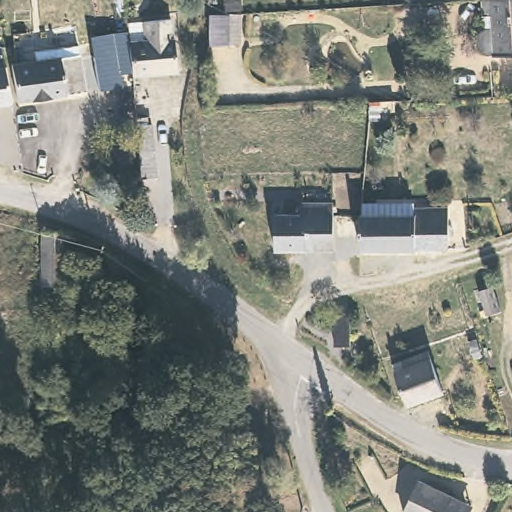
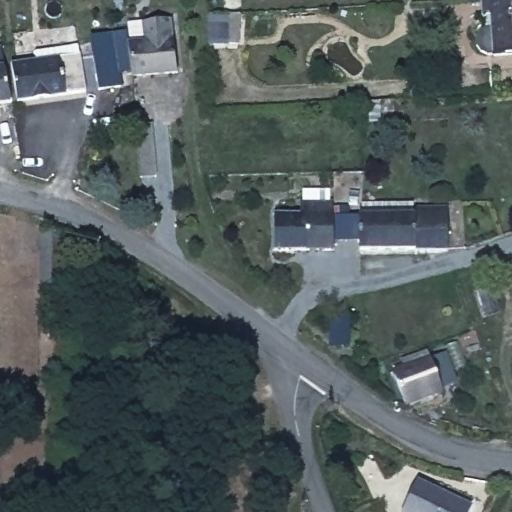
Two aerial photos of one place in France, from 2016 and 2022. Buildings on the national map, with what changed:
unchanged [(494,57),(494,54),(487,55),(485,55),(483,54),(482,53),(481,52),(480,52),(480,51),(479,50),(478,47),(477,46),(477,44),(477,41),(477,40),(477,39),(477,37),(478,36),(478,35),(479,35),(479,34),(480,33),(481,32),(483,31),(484,31),(485,31),(492,30),(491,18),(481,18),(480,2),(512,1),(512,56),(494,57)]
unchanged [(441,27),(412,29),(411,12),(439,10),(441,27)]
unchanged [(226,44),(210,44),(209,14),(225,13),(226,44)]
unchanged [(174,37),(178,66),(130,71),(130,67),(127,41),(145,40),(144,30),(143,19),(171,16),(172,27),(173,37),(174,37)]
unchanged [(239,21),(239,43),(229,43),(229,21),(239,21)]
unchanged [(118,68),(120,82),(96,85),(93,54),(115,51),(114,43),(127,41),(130,67),(118,68)]
unchanged [(16,101),(13,68),(16,68),(16,65),(37,63),(36,52),(80,47),(81,58),(85,92),(16,101)]
unchanged [(10,102),(0,104),(0,50),(4,49),(10,102)]
unchanged [(392,112),(378,112),(379,121),(369,122),(369,103),(392,102),(392,112)]
unchanged [(155,178),(141,179),(136,126),(150,125),(155,178)]
unchanged [(333,250),(276,252),(275,216),(299,216),(299,203),(331,202),(333,250)]
unchanged [(416,210),(448,209),(447,251),(359,251),(359,217),(362,216),(363,204),(416,204),(416,210)]
unchanged [(56,300),(40,298),(40,287),(44,287),(43,231),(63,236),(64,287),(64,301),(56,300)]
unchanged [(350,345),(335,346),(335,317),(349,317),(350,345)]
unchanged [(237,358),(234,366),(229,368),(227,363),(225,359),(227,353),(234,352),(237,358)]
unchanged [(406,405),(394,374),(404,370),(401,362),(418,355),(417,354),(424,352),(441,391),(406,405)]
unchanged [(468,512),(405,512),(419,481),(472,505),(468,512)]

